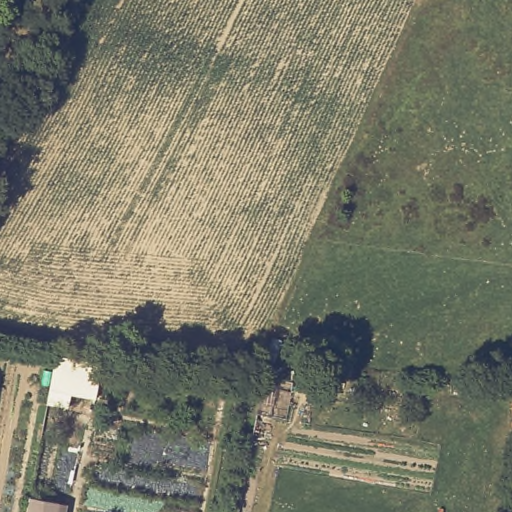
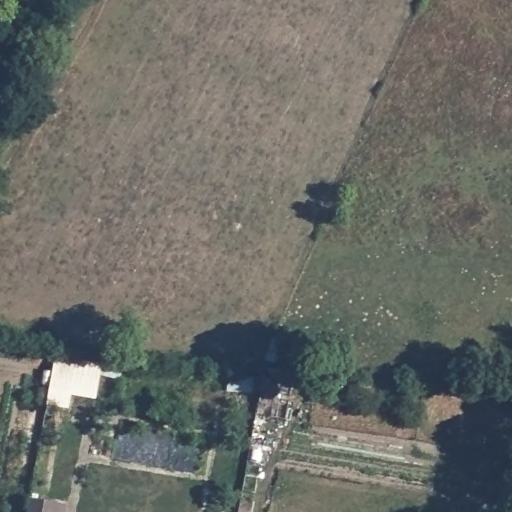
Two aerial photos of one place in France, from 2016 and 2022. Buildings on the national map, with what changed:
unchanged [(70,406),(47,403),(54,367),(76,370),(70,406)]
unchanged [(328,374),(327,389),(301,387),(302,371),(328,374)]
unchanged [(273,404),(259,402),(262,384),(276,386),(273,404)]
unchanged [(27,512),(30,497),(60,503),(68,504),(66,512),(27,512)]

